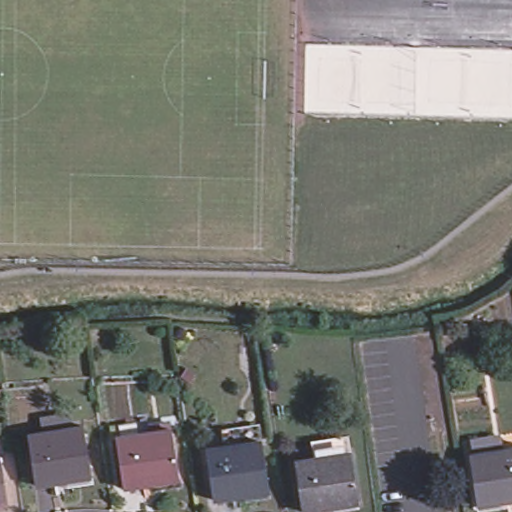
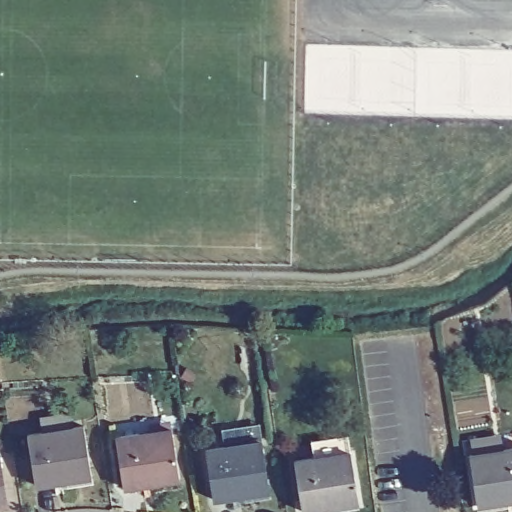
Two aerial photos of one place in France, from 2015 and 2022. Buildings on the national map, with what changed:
unchanged [(176,481),(119,489),(113,438),(168,430),(176,481)]
unchanged [(93,482),(35,490),(28,439),(85,431),(93,482)]
unchanged [(213,508),(206,458),(225,456),(223,438),(261,433),(263,450),(269,501),(213,508)]
unchanged [(336,512),(301,512),(296,466),(314,464),(311,446),(349,441),(351,459),(358,509),(336,512)]
unchanged [(469,459),(512,453),(512,505),(477,509),(469,459)]

